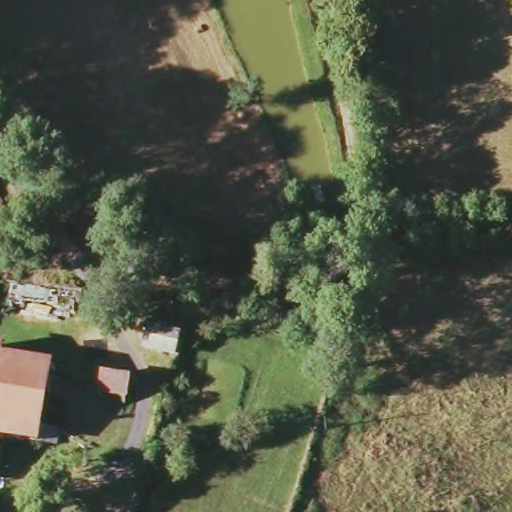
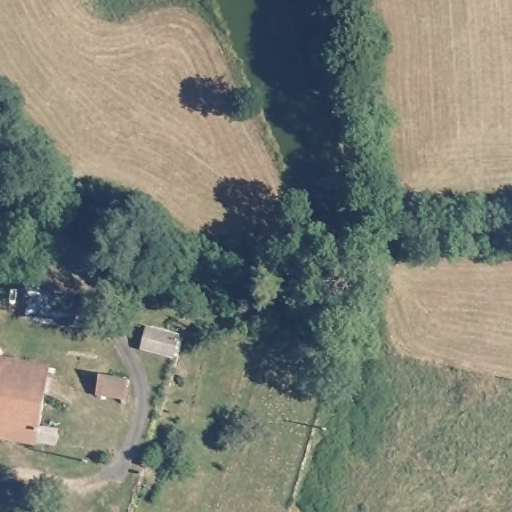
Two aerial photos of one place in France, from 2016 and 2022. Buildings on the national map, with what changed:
unchanged [(163,369),(137,359),(143,340),(168,349),(163,369)]
unchanged [(3,351),(7,363),(50,370),(40,441),(0,434),(0,349),(3,351)]
unchanged [(116,413),(87,407),(90,388),(121,394),(116,413)]

